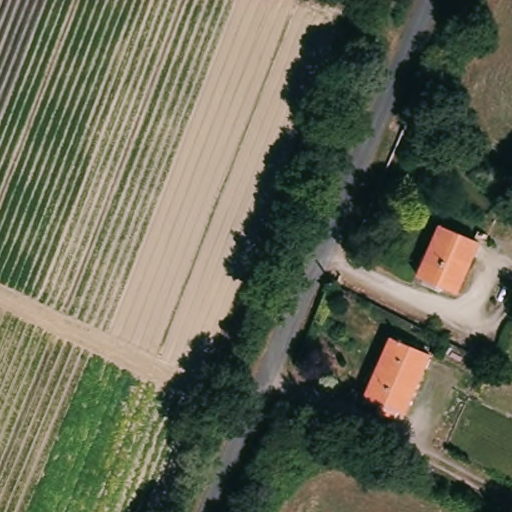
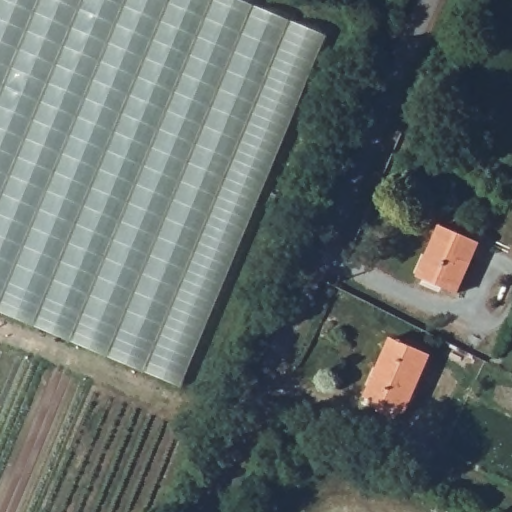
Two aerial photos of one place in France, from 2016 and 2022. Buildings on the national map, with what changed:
new [(0,0),(241,0),(327,35),(182,387),(0,311),(0,0)]
unchanged [(441,224),(477,240),(457,291),(419,275),(441,224)]
unchanged [(361,399),(386,340),(424,356),(398,416),(393,413),(390,420),(382,416),(372,412),(376,406),(361,399)]

